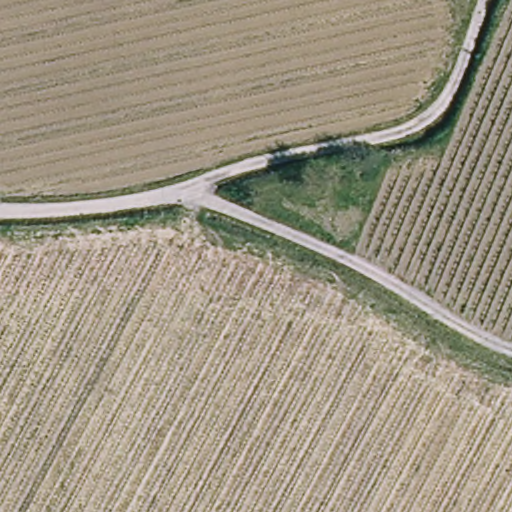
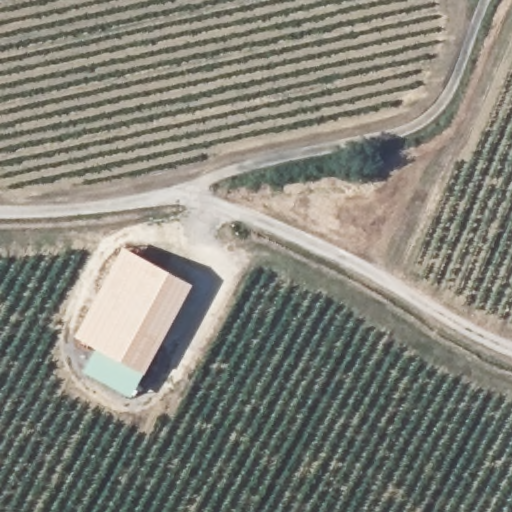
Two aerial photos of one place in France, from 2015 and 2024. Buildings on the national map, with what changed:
new [(115,246),(137,255),(97,348),(75,339),(115,246)]
new [(137,255),(186,276),(146,370),(97,348),(137,255)]

